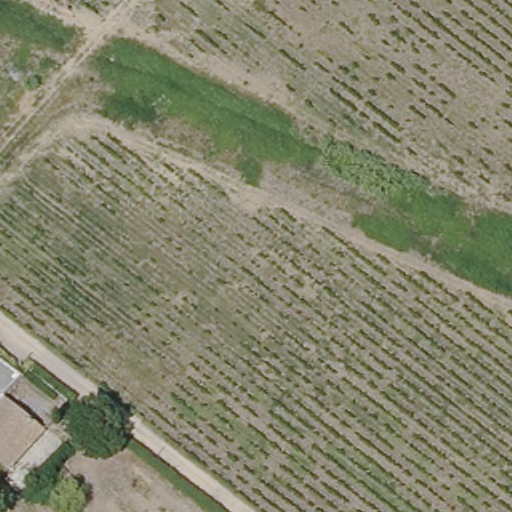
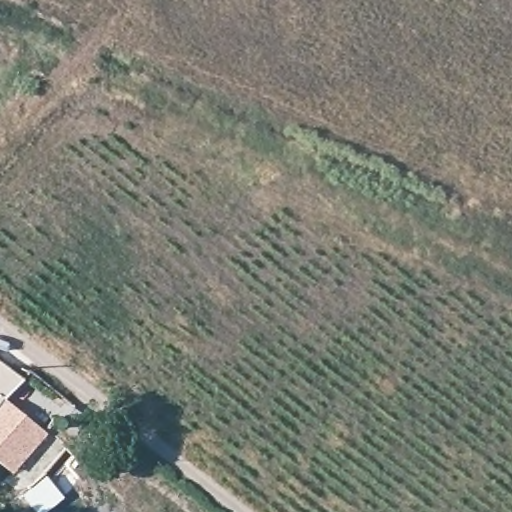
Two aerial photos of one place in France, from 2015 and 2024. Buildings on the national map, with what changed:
new [(11,472),(0,463),(0,361),(22,378),(4,399),(46,433),(11,472)]
demolished [(14,474),(0,463),(0,401),(2,399),(46,437),(14,474)]

